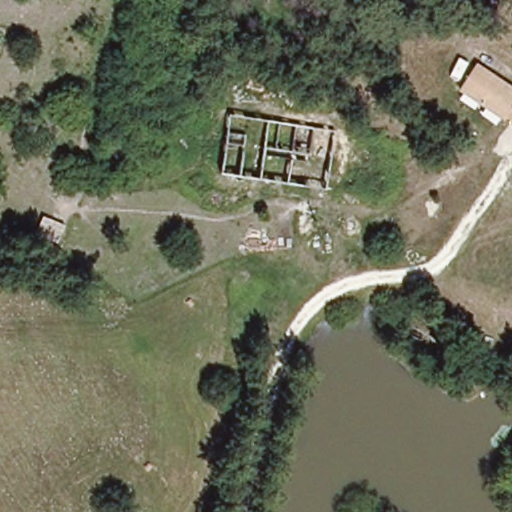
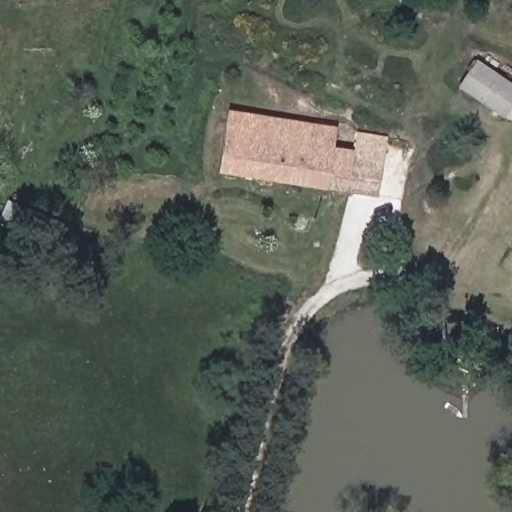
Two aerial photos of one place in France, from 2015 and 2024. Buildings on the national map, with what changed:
unchanged [(512,87),(512,120),(505,116),(502,120),(457,90),(477,63),(512,87)]
new [(228,111),(337,128),(334,149),(356,155),(361,131),(390,138),(382,193),(218,169),(228,111)]

